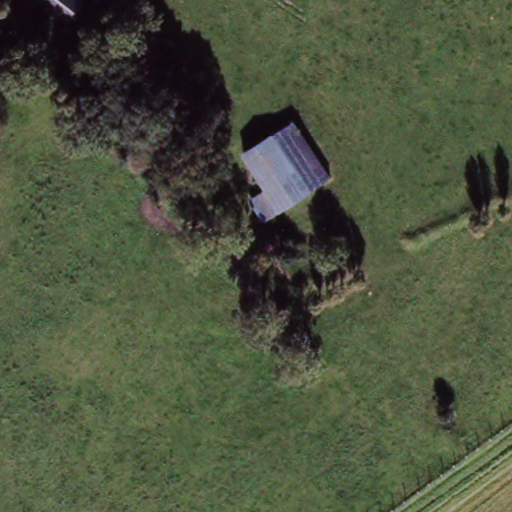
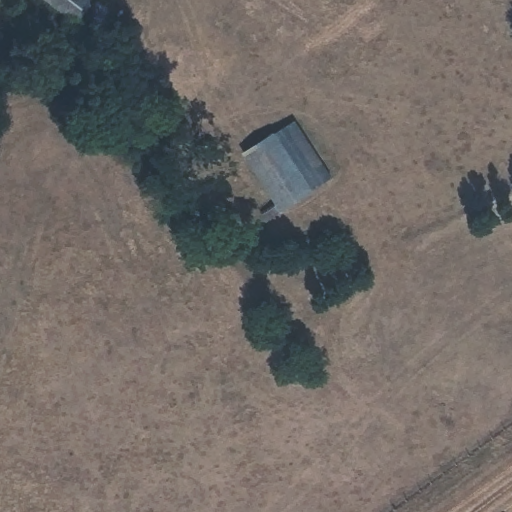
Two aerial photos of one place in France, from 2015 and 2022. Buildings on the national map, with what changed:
unchanged [(44,0),(87,0),(70,21),(44,0)]
unchanged [(313,194),(276,137),(294,123),(333,182),(313,194)]
unchanged [(250,203),(266,192),(244,156),(276,137),(313,194),(282,215),(264,224),(250,203)]

